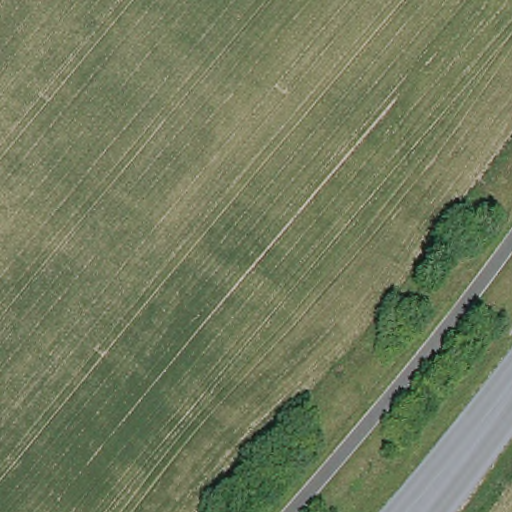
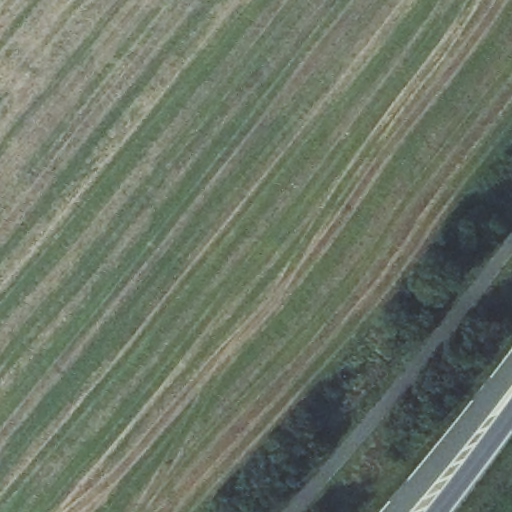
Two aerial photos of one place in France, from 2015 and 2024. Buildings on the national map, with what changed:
[]

